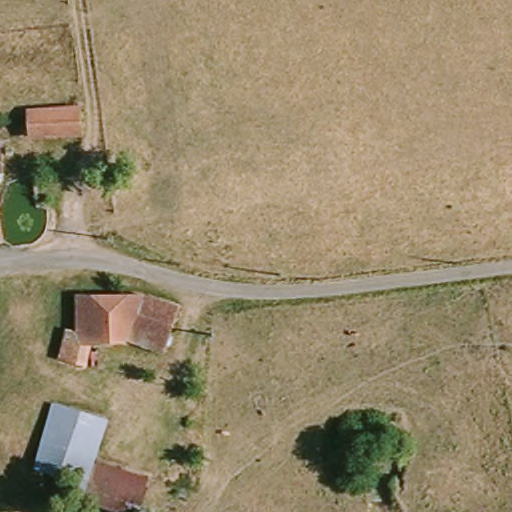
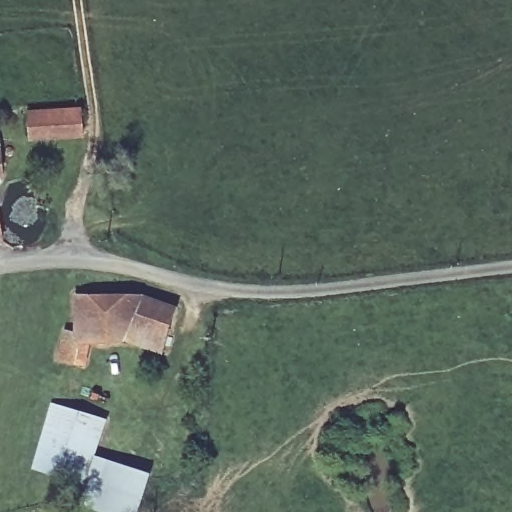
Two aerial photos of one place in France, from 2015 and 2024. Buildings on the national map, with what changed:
unchanged [(82,133),(30,136),(28,110),(80,107),(82,133)]
unchanged [(0,183),(0,162),(2,183),(0,183)]
unchanged [(0,246),(0,238),(1,246),(0,246)]
unchanged [(76,295),(142,294),(177,306),(162,353),(126,340),(90,343),(85,364),(59,357),(67,329),(77,332),(76,295)]
unchanged [(149,481),(139,512),(103,512),(80,504),(81,503),(55,494),(61,478),(37,470),(53,409),(107,425),(94,463),(149,481)]

